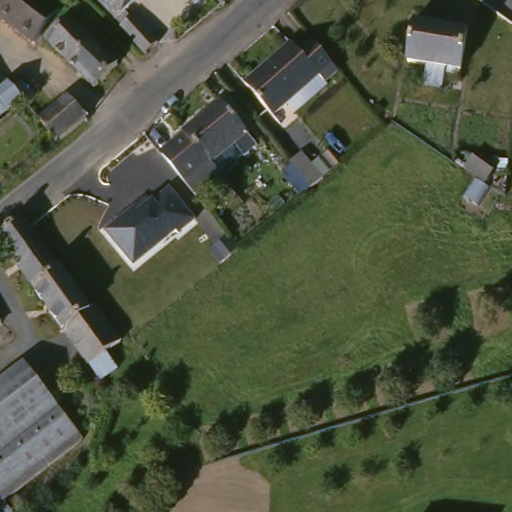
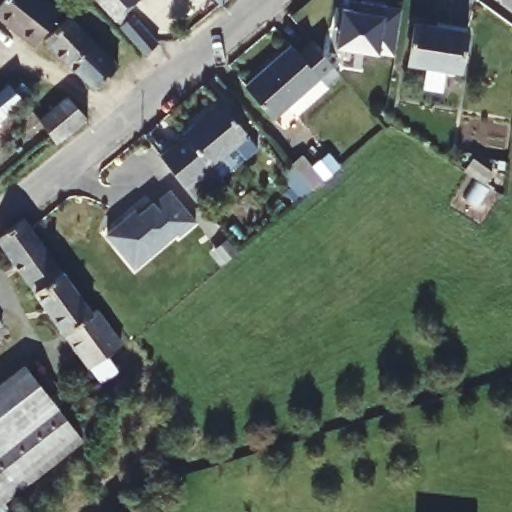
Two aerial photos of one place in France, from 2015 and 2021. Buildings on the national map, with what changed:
unchanged [(69,11),(40,44),(1,14),(11,0),(56,0),(69,11)]
unchanged [(136,7),(128,17),(159,47),(146,60),(92,0),(128,0),(136,7)]
unchanged [(224,4),(221,1),(220,0),(227,0),(224,4)]
new [(338,10),(354,12),(356,4),(403,12),(395,59),(337,49),(340,30),(335,30),(338,10)]
unchanged [(96,87),(46,42),(70,17),(120,62),(96,87)]
unchanged [(467,30),(461,72),(427,67),(404,60),(409,21),(432,25),(467,30)]
unchanged [(328,96),(318,84),(272,120),(244,86),(306,37),(344,84),(328,96)]
unchanged [(0,117),(0,90),(13,104),(0,117)]
unchanged [(87,119),(74,130),(59,141),(41,120),(68,97),(87,119)]
unchanged [(213,166),(226,183),(199,202),(161,155),(224,103),(249,137),(213,166)]
unchanged [(313,191),(292,165),(305,154),(326,180),(313,191)]
new [(495,171),(488,181),(468,168),(476,158),(495,171)]
demolished [(498,181),(491,191),(471,178),(479,168),(498,181)]
unchanged [(133,211),(136,216),(169,192),(195,222),(133,275),(103,234),(133,211)]
unchanged [(98,317),(121,350),(88,375),(0,246),(0,244),(26,222),(95,320),(98,317)]
unchanged [(0,330),(0,324),(3,327),(0,330)]
unchanged [(44,392),(53,408),(0,449),(0,385),(24,367),(44,392)]
unchanged [(8,510),(9,512),(0,512),(0,449),(53,408),(85,447),(8,510)]

